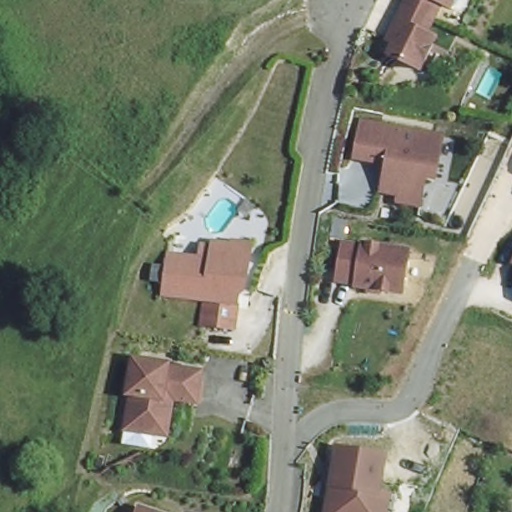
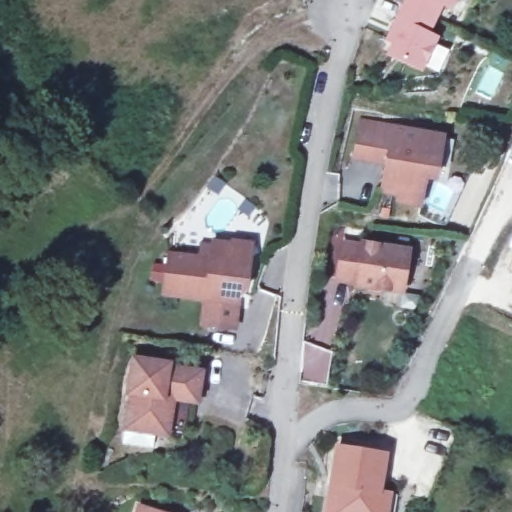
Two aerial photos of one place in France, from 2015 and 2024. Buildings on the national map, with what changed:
unchanged [(398,0),(434,0),(427,16),(397,1),(398,0)]
unchanged [(434,0),(445,0),(443,4),(434,0)]
unchanged [(427,16),(420,30),(419,31),(429,35),(414,66),(388,54),(383,52),(392,32),(384,29),(392,13),(397,1),(427,16)]
unchanged [(424,152),(434,155),(429,175),(420,173),(414,201),(393,197),(394,190),(376,186),(382,154),(357,149),(351,147),(357,116),(370,119),(429,130),(424,152)]
unchanged [(402,291),(356,285),(356,278),(336,275),(342,242),(361,245),(361,242),(408,250),(402,291)]
unchanged [(212,244),(232,246),(231,253),(248,255),(246,282),(240,281),(234,330),(203,326),(204,315),(206,301),(164,296),(163,296),(168,257),(210,262),(212,244)]
unchanged [(172,365),(171,367),(204,372),(199,403),(166,398),(161,435),(128,428),(134,394),(131,393),(137,359),(137,358),(172,365)]
unchanged [(391,495),(388,512),(324,512),(335,447),(383,455),(377,493),(379,493),(391,495)]
unchanged [(176,510),(176,512),(131,512),(136,496),(176,510)]

